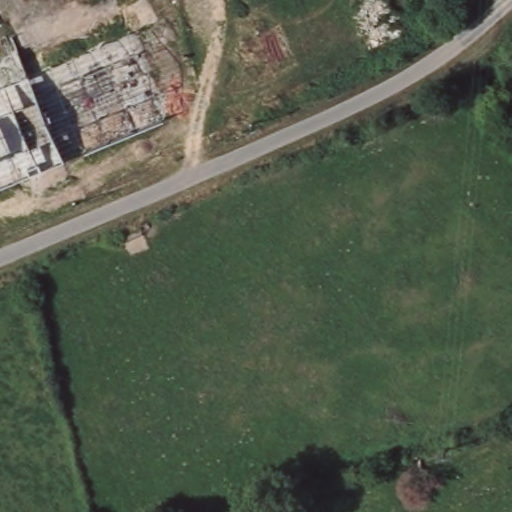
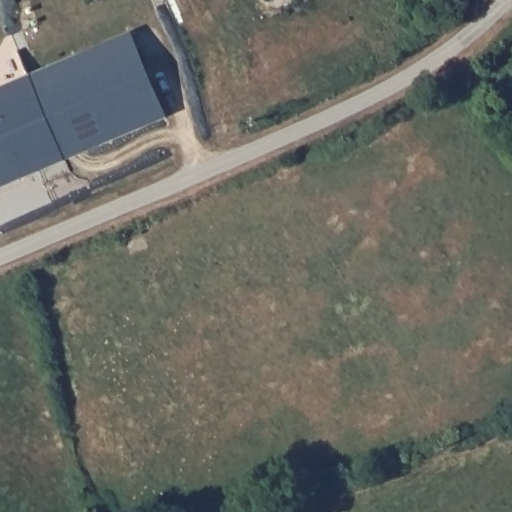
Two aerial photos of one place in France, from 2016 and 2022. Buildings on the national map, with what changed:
new [(0,86),(132,30),(167,118),(0,187),(0,86)]
demolished [(0,60),(17,53),(27,79),(2,89),(35,173),(0,187),(0,60)]

